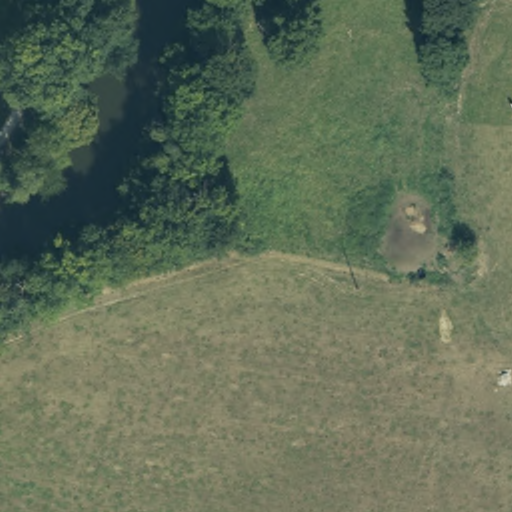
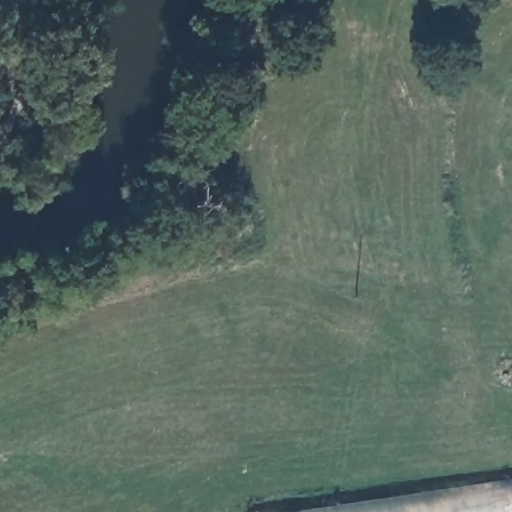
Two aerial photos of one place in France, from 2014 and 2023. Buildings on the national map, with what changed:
new [(512,478),(512,512),(287,512),(512,478)]

